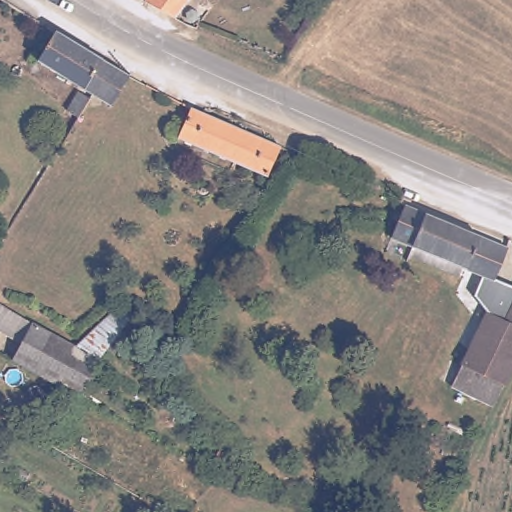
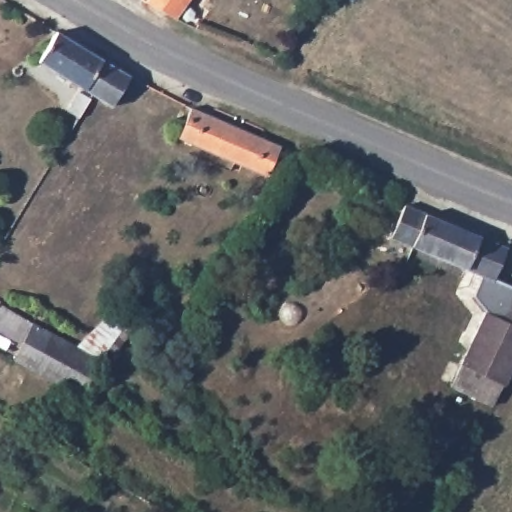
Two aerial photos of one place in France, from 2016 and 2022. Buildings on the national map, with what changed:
unchanged [(145,0),(183,0),(169,19),(145,0)]
unchanged [(116,105),(93,92),(37,58),(56,28),(134,76),(116,105)]
unchanged [(69,107),(81,90),(91,96),(79,114),(69,107)]
unchanged [(269,169),(190,136),(181,132),(191,104),(212,113),(261,135),(282,145),(269,169)]
unchanged [(506,243),(491,276),(394,240),(405,202),(506,243)]
unchanged [(0,295),(0,296),(0,291),(2,292),(0,295)]
unchanged [(40,317),(30,337),(0,321),(0,296),(0,295),(40,317)]
unchanged [(123,300),(139,308),(104,354),(83,342),(123,300)]
unchanged [(83,342),(104,354),(80,397),(16,363),(30,337),(40,317),(83,342)]
unchanged [(459,392),(494,320),(511,327),(512,325),(512,374),(496,407),(459,392)]

